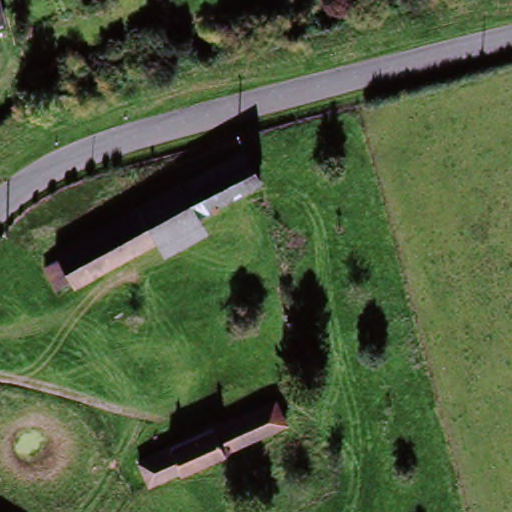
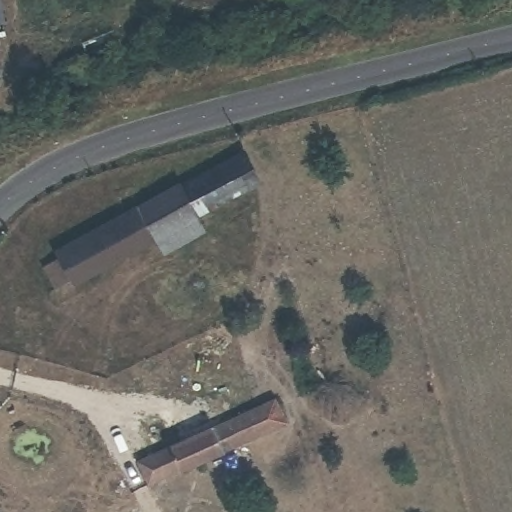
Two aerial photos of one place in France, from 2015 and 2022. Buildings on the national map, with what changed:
unchanged [(173,201),(251,156),(264,184),(265,185),(166,241),(92,276),(79,249),(108,235),(173,201)]
unchanged [(213,466),(173,487),(169,483),(156,489),(143,468),(161,459),(158,454),(198,433),(200,439),(243,416),(263,406),(274,427),(254,438),(211,461),(213,466)]

